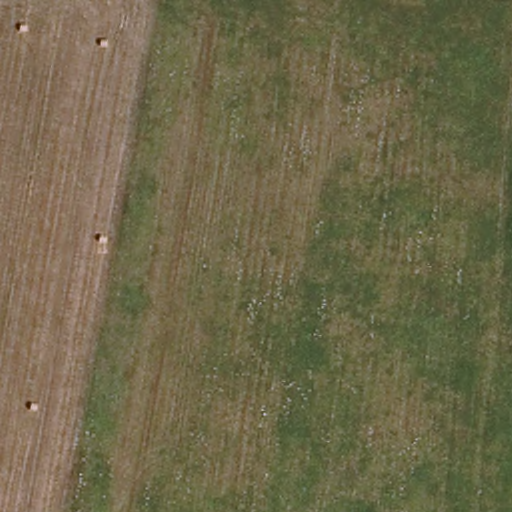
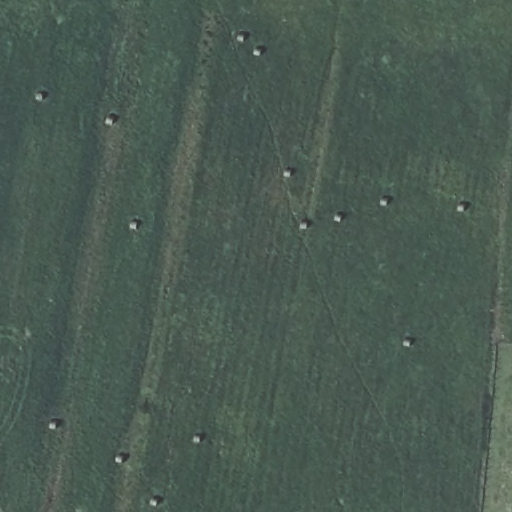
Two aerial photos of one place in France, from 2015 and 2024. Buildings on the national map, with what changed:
[]

